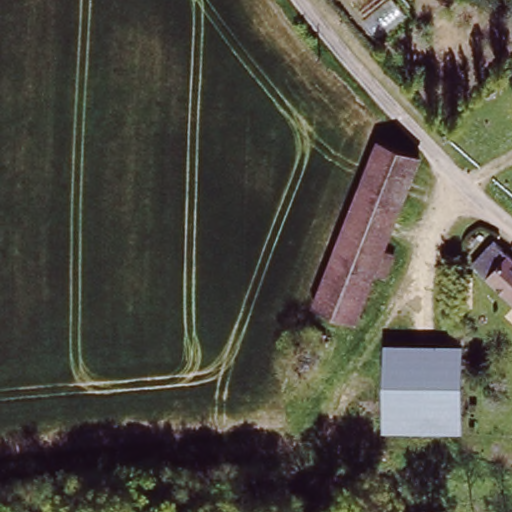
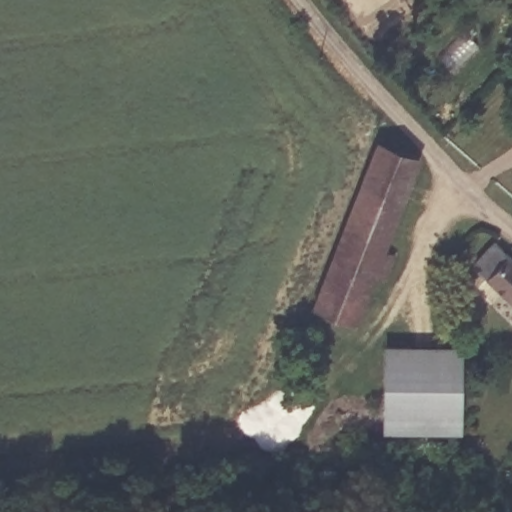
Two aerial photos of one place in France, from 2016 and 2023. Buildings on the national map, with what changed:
unchanged [(379,132),(417,148),(402,187),(363,172),(379,132)]
unchanged [(402,187),(383,237),(396,241),(384,272),(372,267),(348,330),(307,313),(363,172),(402,187)]
unchanged [(512,248),(512,297),(480,262),(503,239),(512,248)]
unchanged [(327,357),(315,387),(287,376),(298,345),(327,357)]
unchanged [(466,356),(457,430),(386,419),(395,346),(466,356)]

